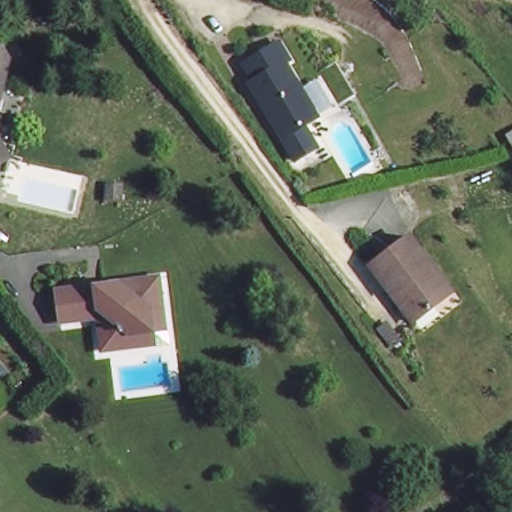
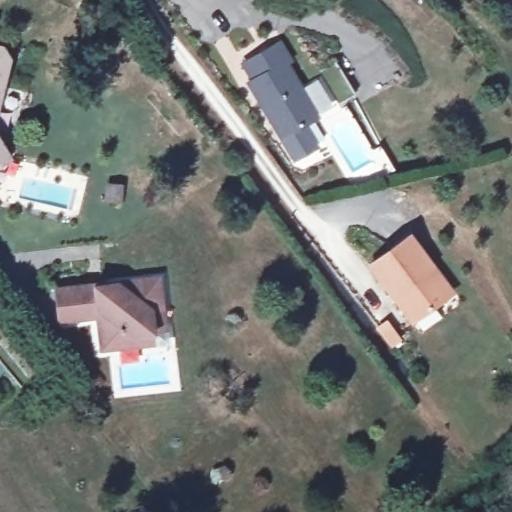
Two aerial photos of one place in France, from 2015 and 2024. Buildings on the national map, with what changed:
unchanged [(13,40),(0,109),(0,38),(13,40)]
unchanged [(272,57),(304,110),(295,120),(306,140),(288,150),(243,75),(248,73),(239,57),(269,40),(276,54),(272,57)]
unchanged [(19,157),(0,170),(0,120),(19,157)]
unchanged [(512,133),(512,152),(504,137),(512,133)]
unchanged [(446,288),(410,316),(370,266),(406,237),(446,288)]
unchanged [(95,331),(98,324),(93,317),(53,320),(51,285),(154,277),(159,322),(137,344),(95,348),(95,331)]

